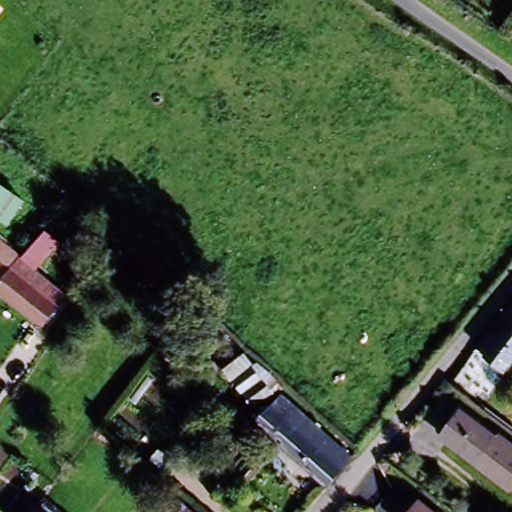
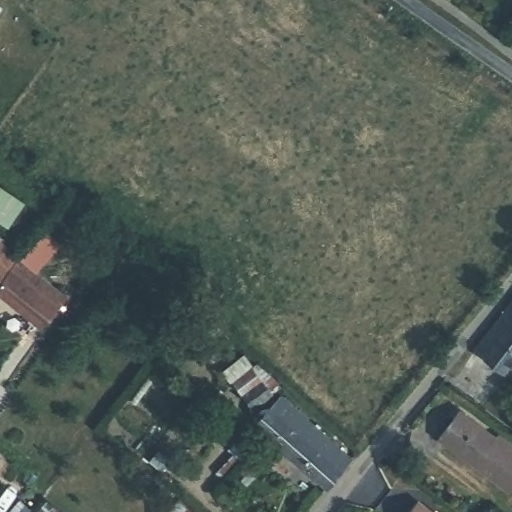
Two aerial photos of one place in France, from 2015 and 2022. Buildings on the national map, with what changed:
unchanged [(9,222),(0,217),(0,182),(25,198),(9,222)]
unchanged [(7,276),(10,277),(16,270),(43,237),(58,250),(35,278),(49,291),(61,302),(51,313),(36,331),(0,299),(0,249),(17,263),(7,276)]
unchanged [(479,357),(471,351),(512,296),(512,312),(479,357)]
unchanged [(512,312),(512,355),(499,372),(479,357),(512,312)]
unchanged [(335,471),(320,489),(258,433),(248,425),(256,416),(220,381),(248,353),(281,387),(273,396),(287,408),(301,422),(345,460),(335,471)]
unchanged [(445,443),(465,418),(506,450),(510,447),(512,448),(512,494),(445,443)]
unchanged [(177,497),(185,503),(195,512),(165,512),(177,497)]
unchanged [(411,499),(427,512),(402,512),(411,499)]
unchanged [(30,508),(35,512),(28,512),(30,508)]

